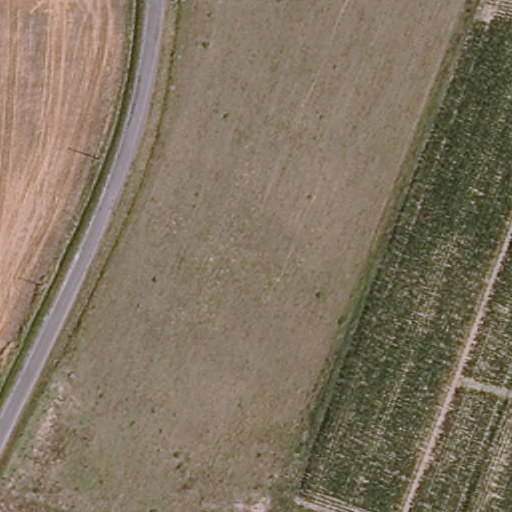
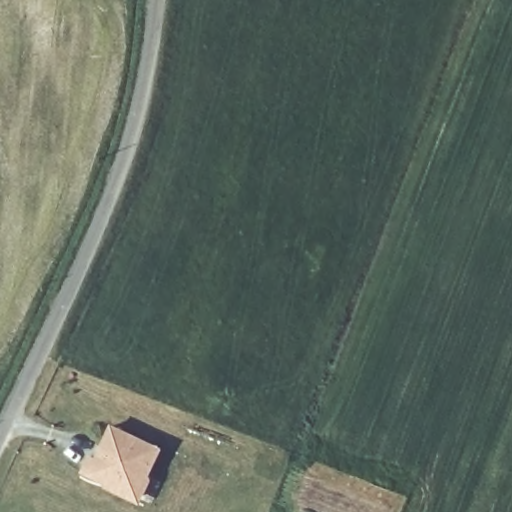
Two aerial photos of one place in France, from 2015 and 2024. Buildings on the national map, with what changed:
new [(87,457),(92,460),(107,426),(157,449),(134,498),(80,473),(87,457)]

